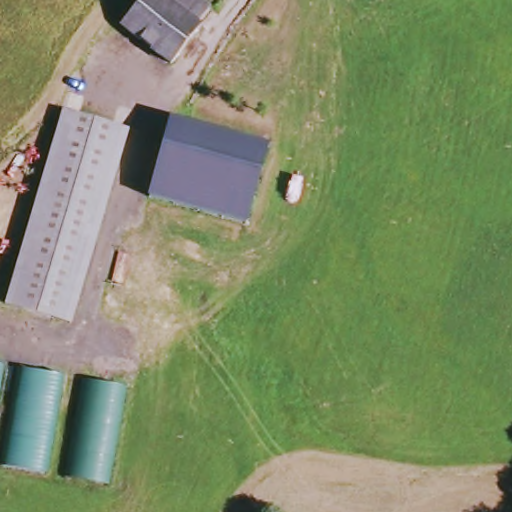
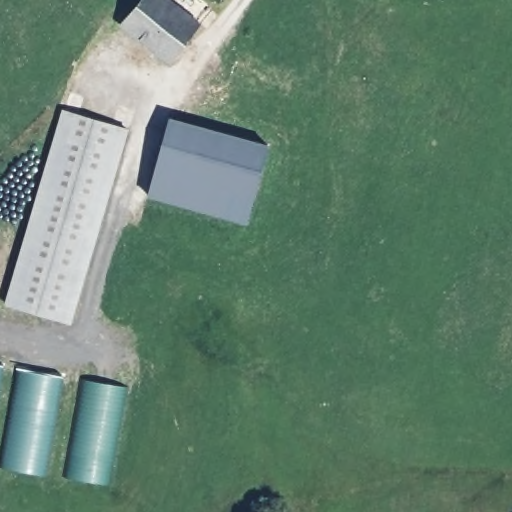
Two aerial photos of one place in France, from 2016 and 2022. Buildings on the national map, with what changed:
unchanged [(202,21),(208,25),(178,65),(129,29),(151,0),(204,0),(212,6),(202,21)]
unchanged [(73,320),(11,299),(68,114),(135,133),(73,320)]
unchanged [(253,225),(160,196),(184,122),(277,154),(253,225)]
unchanged [(7,365),(0,396),(0,364),(7,365)]
unchanged [(20,368),(67,377),(47,476),(0,467),(20,368)]
unchanged [(68,474),(87,378),(124,385),(107,481),(68,474)]

